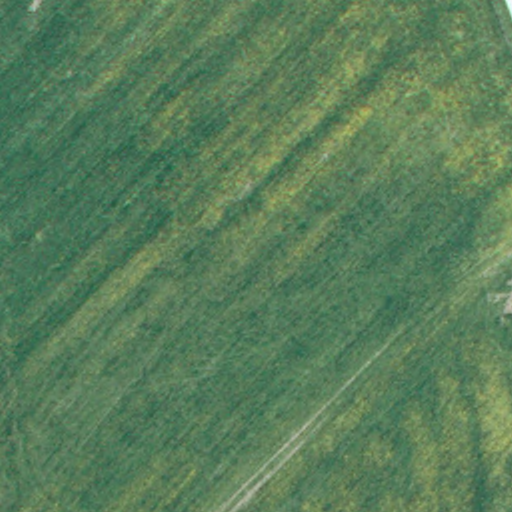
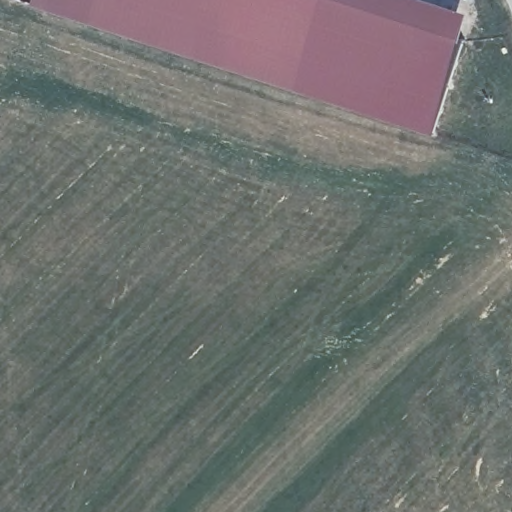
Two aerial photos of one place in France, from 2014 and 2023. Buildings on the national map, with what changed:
new [(472,13),(434,134),(34,5),(36,0),(432,0),(472,13)]

